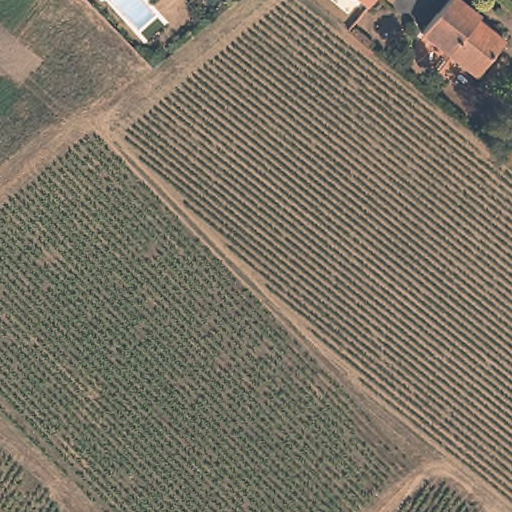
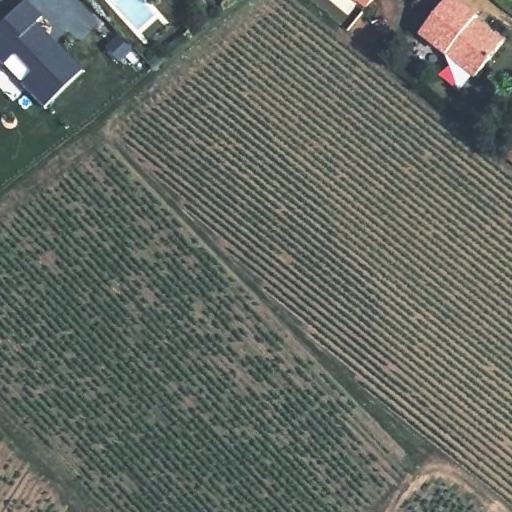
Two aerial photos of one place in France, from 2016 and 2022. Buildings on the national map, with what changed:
unchanged [(364,0),(373,0),(370,5),(364,0)]
unchanged [(442,0),(465,0),(506,33),(475,72),(418,29),(442,0)]
new [(22,82),(32,72),(14,54),(3,64),(0,61),(0,24),(23,1),(41,18),(36,23),(81,69),(44,106),(22,82)]
unchanged [(512,147),(512,160),(505,155),(512,147)]

